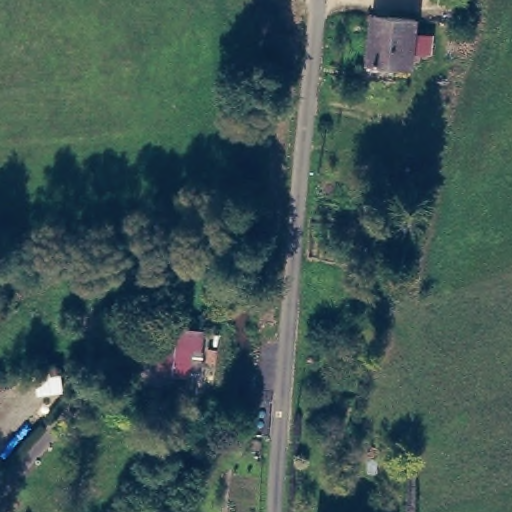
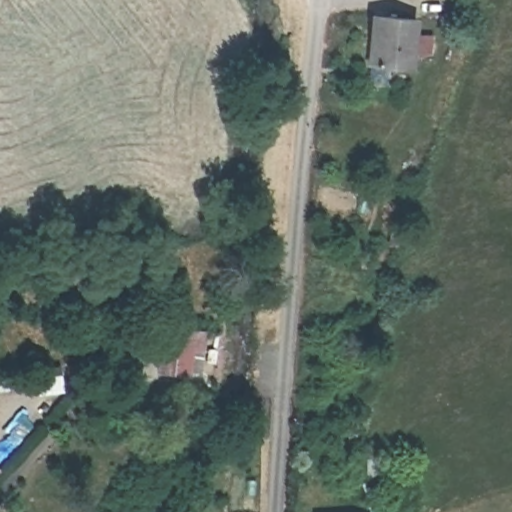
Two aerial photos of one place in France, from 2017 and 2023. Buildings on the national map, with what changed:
unchanged [(404,70),(363,65),(371,16),(412,21),(404,70)]
unchanged [(203,364),(193,363),(193,369),(161,367),(163,355),(170,356),(172,329),(206,330),(203,364)]
unchanged [(146,334),(143,353),(123,351),(125,332),(146,334)]

